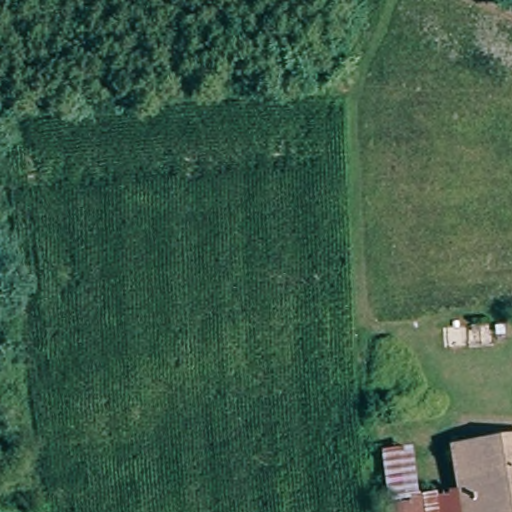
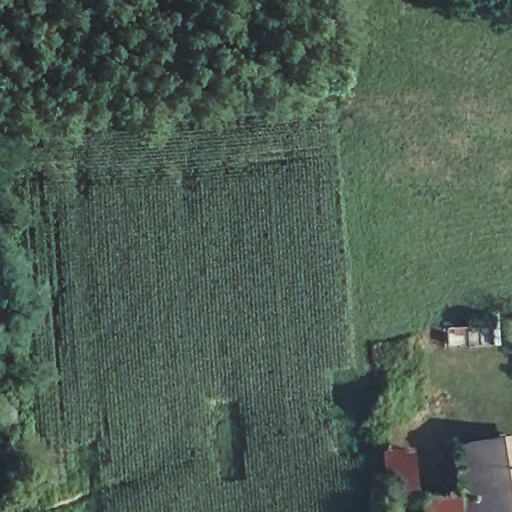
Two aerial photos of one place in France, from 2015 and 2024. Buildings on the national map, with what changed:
unchanged [(454,480),(449,452),(469,450),(512,446),(512,512),(459,512),(455,487),(454,480)]
unchanged [(414,450),(421,496),(455,490),(459,512),(388,512),(382,457),(414,450)]

